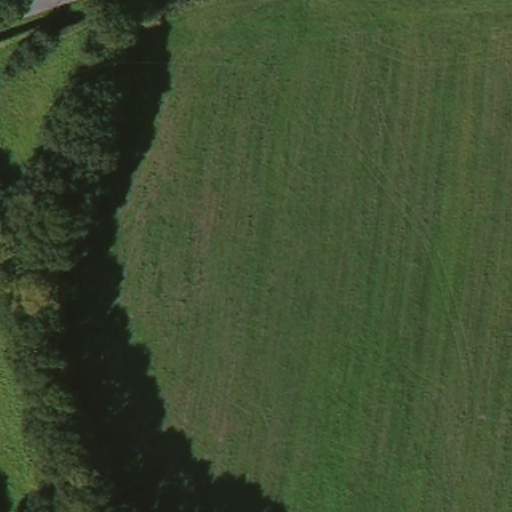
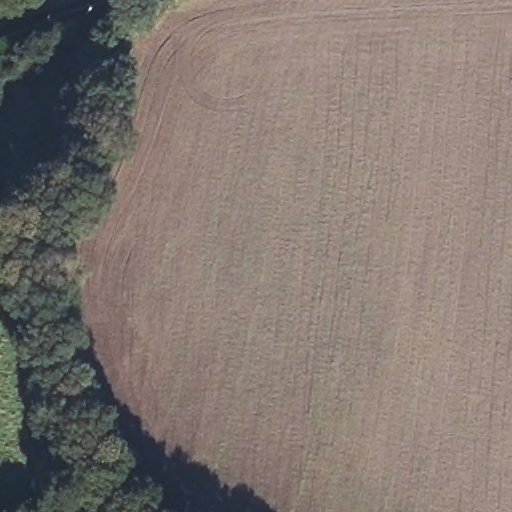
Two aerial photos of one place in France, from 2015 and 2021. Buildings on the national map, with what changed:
[]

